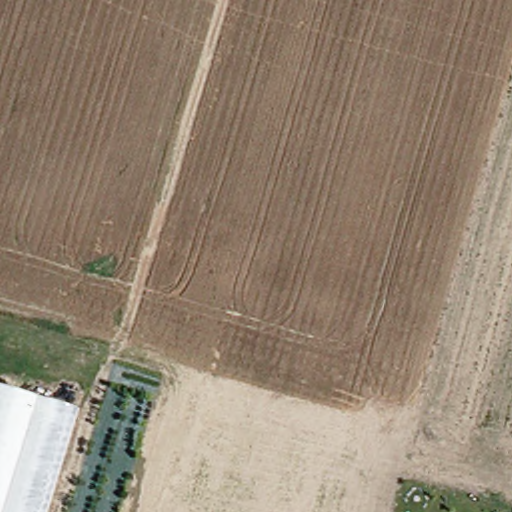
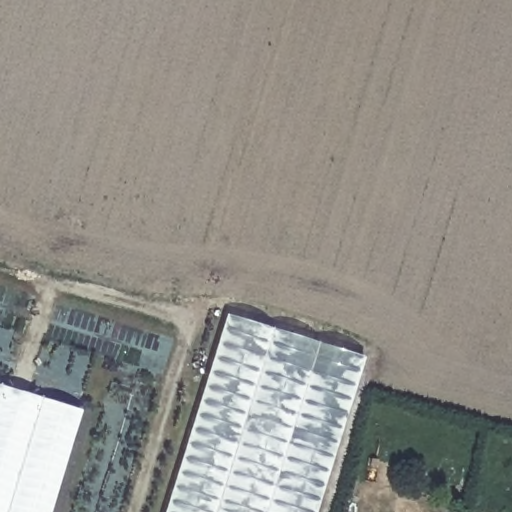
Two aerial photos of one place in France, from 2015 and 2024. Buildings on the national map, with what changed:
new [(221,313),(361,356),(311,512),(160,512),(221,313)]
unchanged [(84,409),(53,512),(0,512),(0,386),(84,409)]

